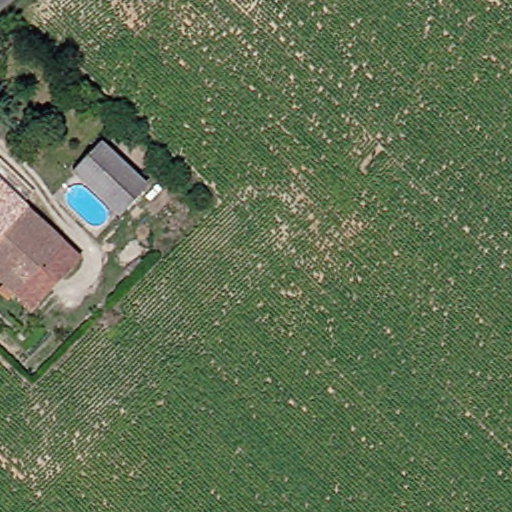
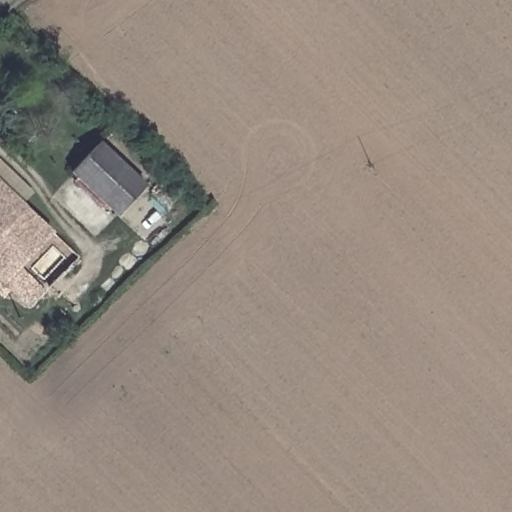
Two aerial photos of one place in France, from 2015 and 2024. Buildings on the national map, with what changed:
unchanged [(136,181),(109,210),(64,168),(92,139),(136,181)]
unchanged [(23,312),(5,294),(0,299),(0,192),(70,257),(23,312)]

